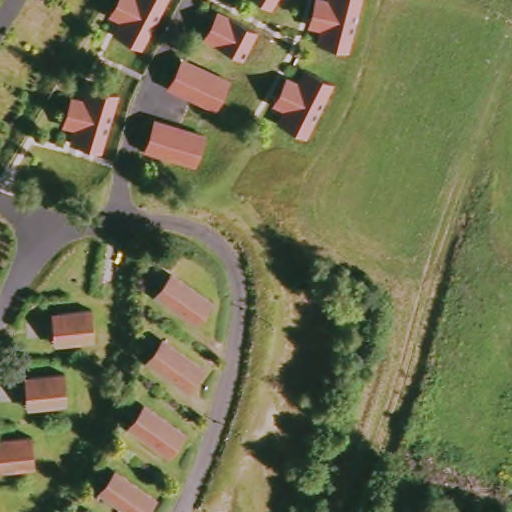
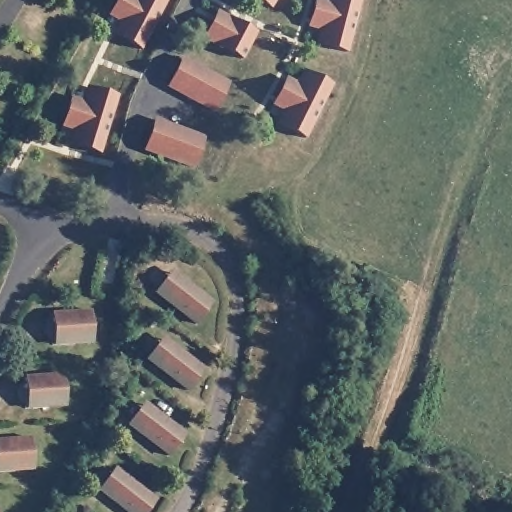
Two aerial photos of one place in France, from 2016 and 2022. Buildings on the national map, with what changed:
unchanged [(121,42),(132,22),(112,16),(118,0),(173,0),(149,56),(121,42)]
unchanged [(251,0),(286,0),(278,16),(251,0)]
unchanged [(325,47),(328,42),(298,33),(314,0),(366,0),(354,58),(325,47)]
unchanged [(217,11),(258,32),(245,61),(202,41),(217,11)]
unchanged [(182,59),(229,84),(214,115),(166,89),(182,59)]
unchanged [(312,142),(281,123),(290,108),(276,105),(290,74),(298,80),(305,67),(338,84),(312,142)]
unchanged [(106,159),(72,145),(78,131),(64,126),(76,92),(84,98),(92,85),(123,98),(106,159)]
unchanged [(152,120),(204,137),(194,171),(142,153),(152,120)]
unchanged [(201,329),(169,305),(159,297),(174,276),(184,283),(215,308),(201,329)]
unchanged [(55,317),(63,317),(96,315),(97,347),(63,350),(56,350),(55,317)]
unchanged [(192,395),(161,372),(150,363),(165,342),(176,351),(206,374),(192,395)]
unchanged [(29,380),(36,380),(69,377),(71,410),(38,412),(30,412),(29,380)]
unchanged [(173,457),(142,433),(131,425),(146,405),(157,413),(187,437),(173,457)]
unchanged [(37,437),(38,470),(5,472),(0,472),(0,439),(3,439),(37,437)]
unchanged [(154,512),(124,512),(113,503),(102,495),(118,473),(129,482),(158,506),(154,512)]
unchanged [(1,512),(0,512),(0,507),(1,507),(1,512)]

